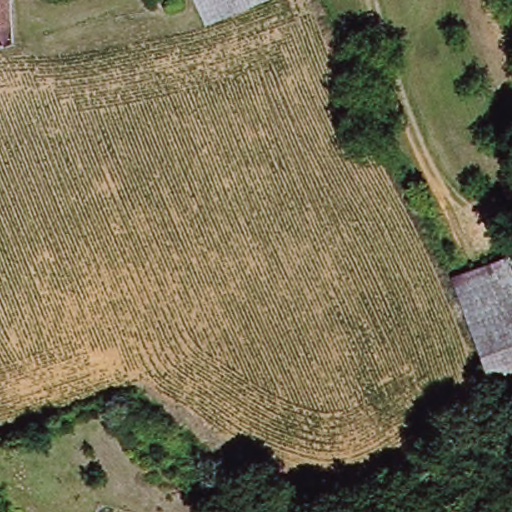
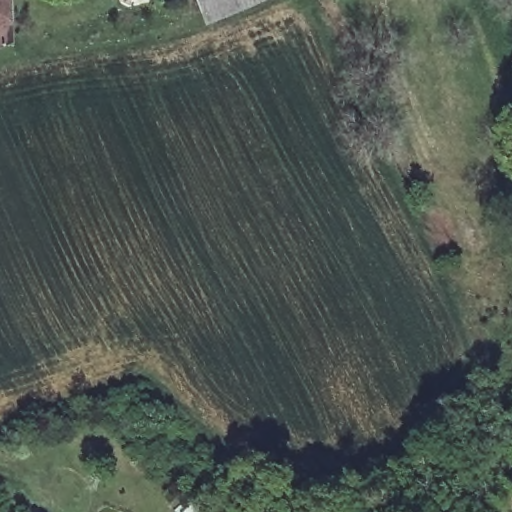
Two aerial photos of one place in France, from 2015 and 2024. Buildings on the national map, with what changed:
unchanged [(14,37),(0,43),(0,0),(12,0),(12,8),(14,37)]
unchanged [(258,0),(219,15),(205,20),(198,0),(258,0)]
demolished [(495,389),(453,270),(512,251),(512,383),(495,389)]

